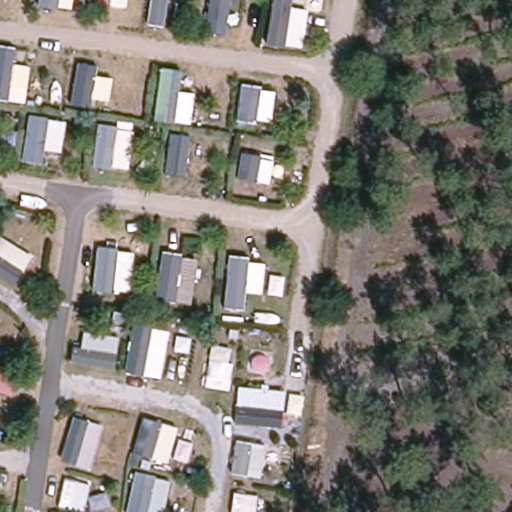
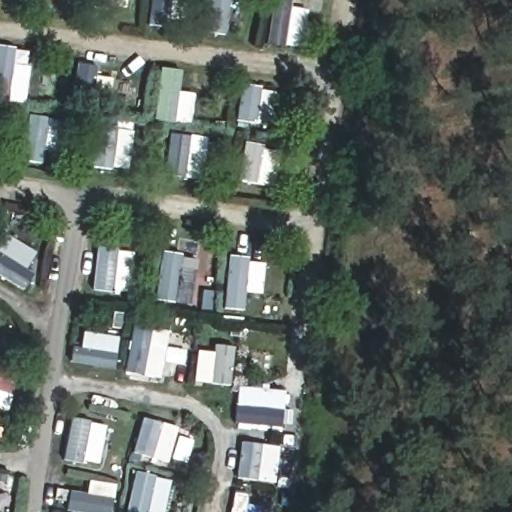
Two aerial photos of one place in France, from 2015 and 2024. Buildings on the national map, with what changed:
unchanged [(7,392),(0,391),(0,364),(15,368),(7,392)]

